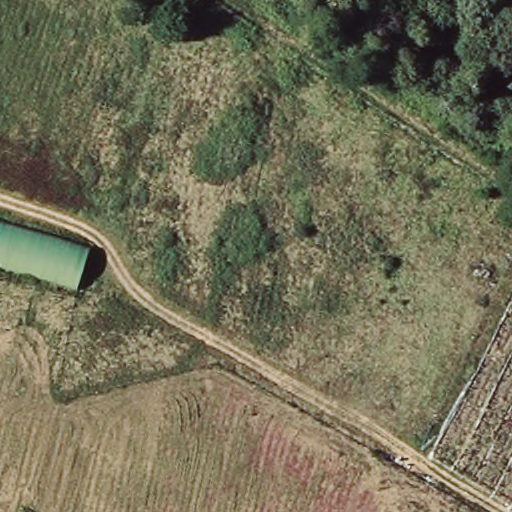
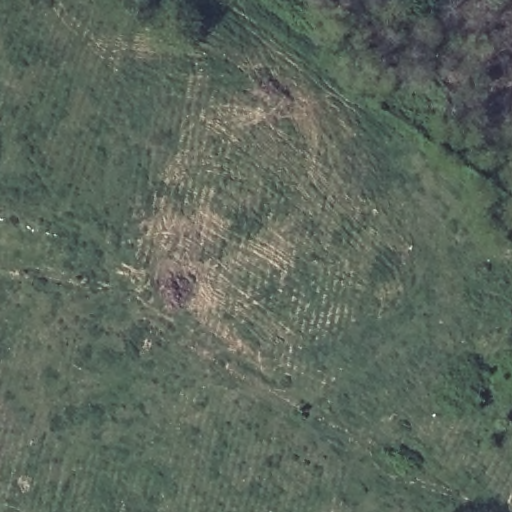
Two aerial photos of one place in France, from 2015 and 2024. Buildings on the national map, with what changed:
demolished [(80,288),(0,268),(0,220),(91,244),(80,288)]

